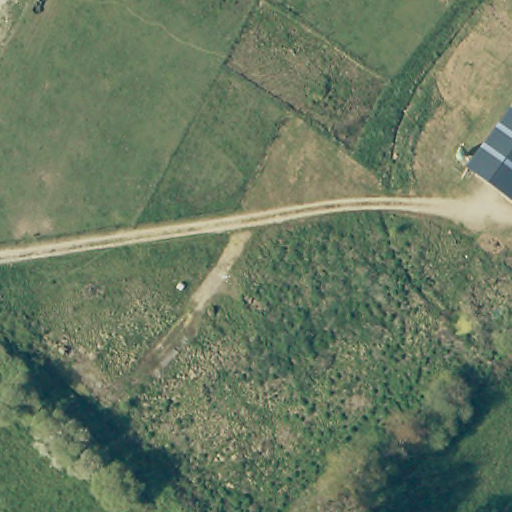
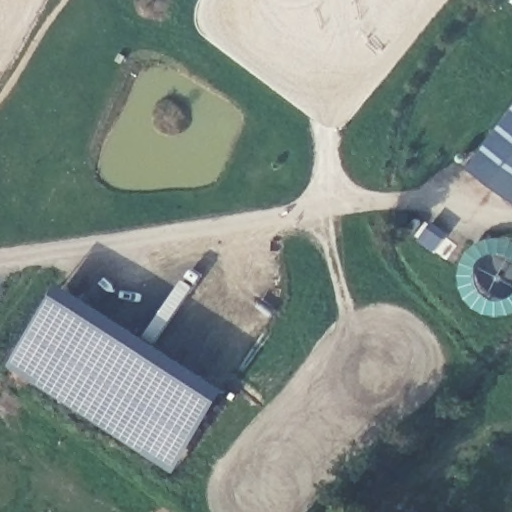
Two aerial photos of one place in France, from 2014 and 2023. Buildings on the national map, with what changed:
unchanged [(468,171),(512,109),(512,204),(468,171)]
new [(176,472),(8,366),(62,282),(229,389),(176,472)]

